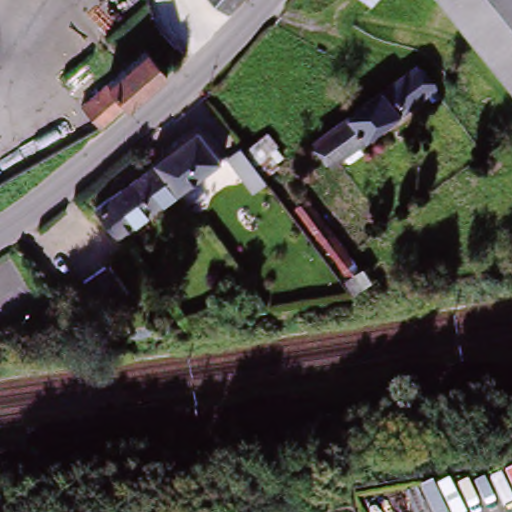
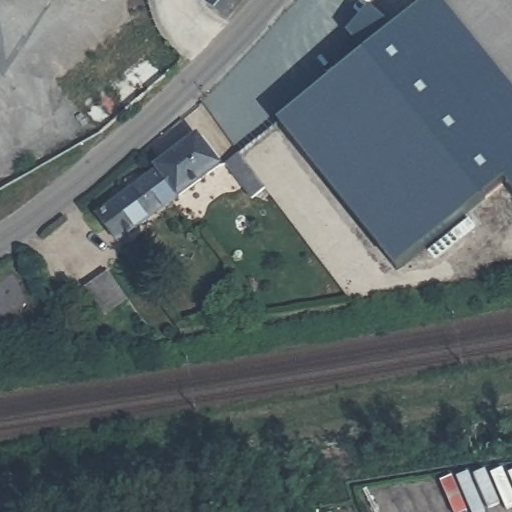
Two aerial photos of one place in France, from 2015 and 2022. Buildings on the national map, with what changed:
unchanged [(214,14),(203,3),(205,0),(238,0),(222,20),(210,35),(201,27),(214,14)]
new [(507,178),(399,265),(278,116),(365,46),(349,26),(371,0),(391,25),(418,0),(439,0),(512,93),(512,185),(507,178)]
unchanged [(439,0),(512,0),(512,93),(439,0)]
unchanged [(101,130),(100,131),(84,110),(148,56),(165,76),(101,130)]
demolished [(334,172),(317,150),(415,76),(432,99),(334,172)]
unchanged [(156,170),(155,167),(156,166),(197,136),(218,167),(178,197),(156,170)]
unchanged [(265,190),(252,199),(225,165),(239,155),(265,190)]
unchanged [(116,244),(95,215),(156,170),(178,197),(116,244)]
demolished [(347,261),(336,270),(294,215),(305,206),(347,261)]
unchanged [(108,271),(128,298),(116,306),(105,315),(85,287),(96,280),(108,271)]
unchanged [(93,313),(79,323),(64,303),(78,293),(93,313)]

